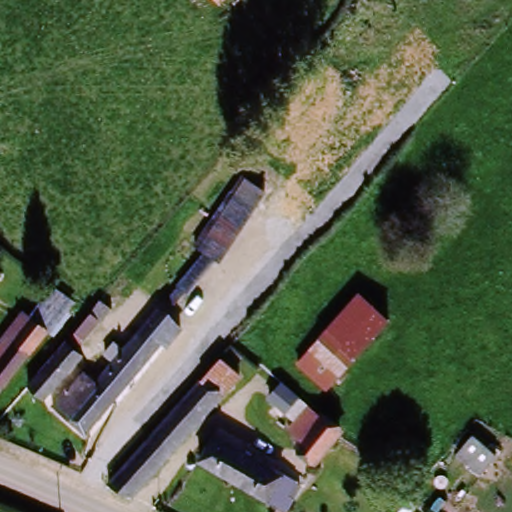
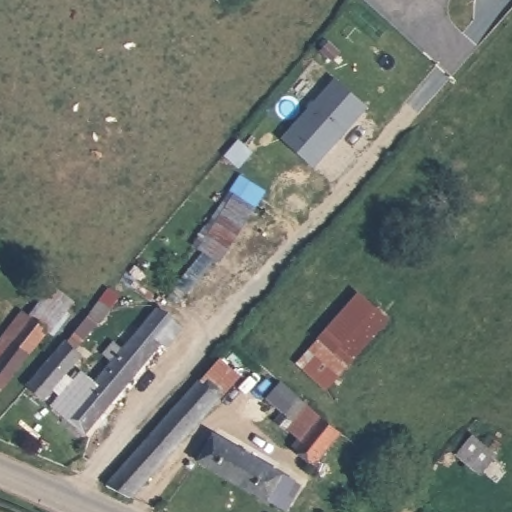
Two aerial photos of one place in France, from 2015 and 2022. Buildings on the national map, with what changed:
unchanged [(223,6),(215,0),(228,0),(223,6)]
new [(474,2),(471,0),(476,0),(474,2)]
new [(336,78),(368,107),(313,169),(281,138),(336,78)]
demolished [(329,143),(347,159),(310,202),(290,181),(329,143)]
unchanged [(166,291),(225,210),(241,186),(262,201),(245,223),(185,305),(166,291)]
unchanged [(338,284),(385,324),(346,369),(316,344),(300,329),(338,284)]
unchanged [(30,320),(32,318),(47,329),(30,354),(5,388),(0,396),(0,338),(19,311),(30,320)]
unchanged [(147,328),(162,341),(126,382),(110,370),(147,328)]
unchanged [(31,389),(68,344),(80,353),(43,399),(31,389)]
unchanged [(326,393),(296,367),(316,344),(346,369),(326,393)]
unchanged [(206,382),(225,361),(239,373),(220,395),(132,496),(112,485),(206,382)]
unchanged [(83,372),(99,383),(110,370),(126,382),(84,433),(68,420),(54,408),(69,390),(83,372)]
unchanged [(309,450),(310,443),(296,432),(302,427),(278,406),(290,391),(313,410),(328,421),(346,437),(325,461),(309,450)]
unchanged [(279,512),(271,512),(204,455),(222,432),(295,493),(279,512)]
unchanged [(478,480),(450,453),(474,432),(502,463),(478,480)]

